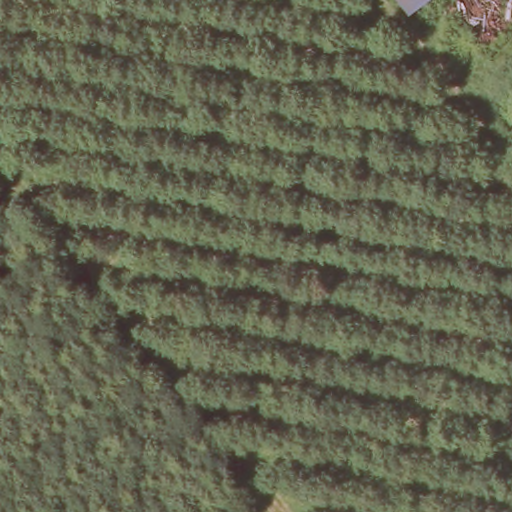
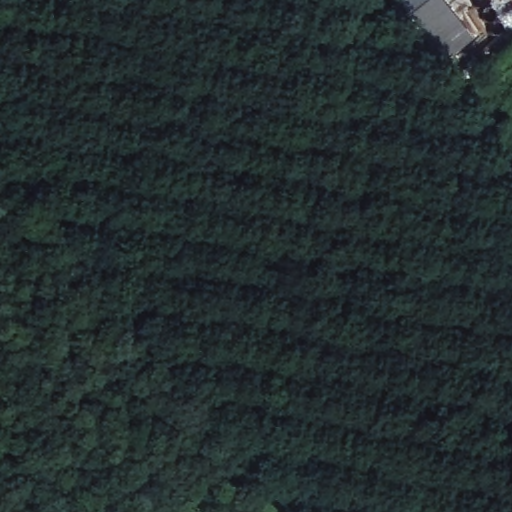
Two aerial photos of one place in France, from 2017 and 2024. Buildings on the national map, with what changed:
unchanged [(407,15),(395,0),(427,0),(407,15)]

